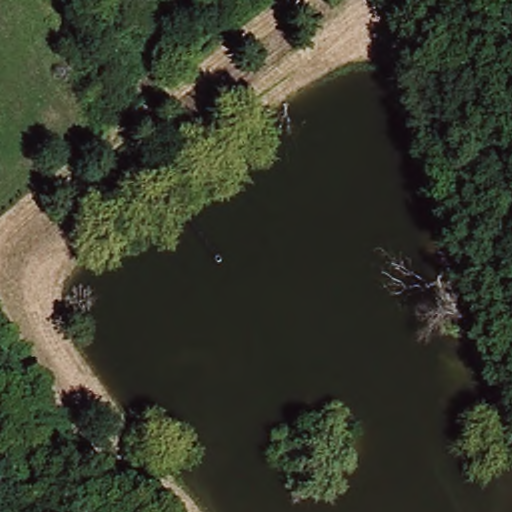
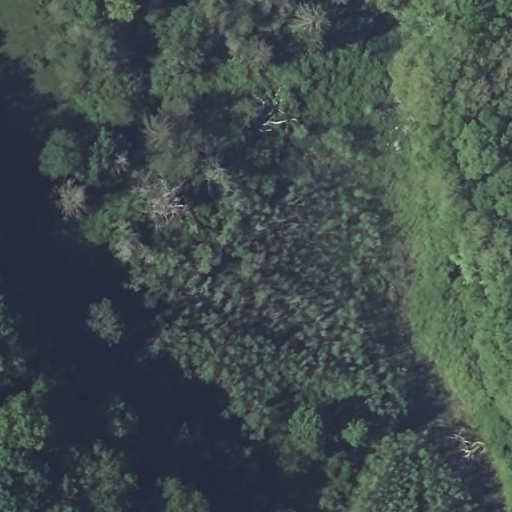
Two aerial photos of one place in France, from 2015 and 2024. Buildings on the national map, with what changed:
[]

